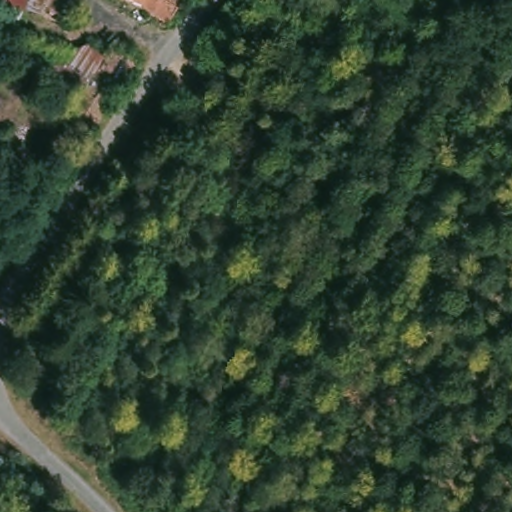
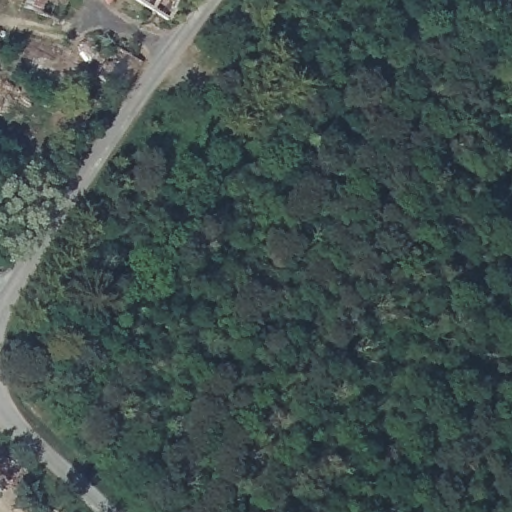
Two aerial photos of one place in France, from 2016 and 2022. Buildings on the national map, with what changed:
unchanged [(0,9),(0,0),(9,0),(6,10),(0,9)]
unchanged [(61,28),(6,10),(9,0),(69,0),(61,28)]
unchanged [(167,16),(137,0),(176,0),(167,16)]
unchanged [(81,54),(91,33),(115,46),(97,75),(89,72),(77,93),(12,63),(26,35),(81,54)]
unchanged [(4,42),(0,51),(0,41),(4,42)]
unchanged [(119,88),(95,131),(77,119),(70,129),(60,122),(65,110),(57,107),(64,95),(72,100),(77,93),(89,72),(97,75),(115,46),(119,41),(144,56),(125,91),(119,88)]

